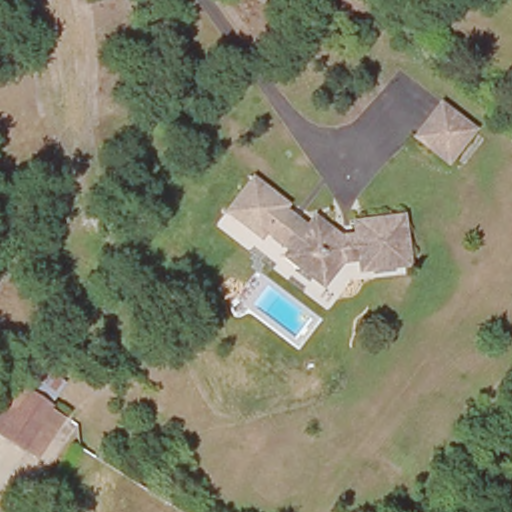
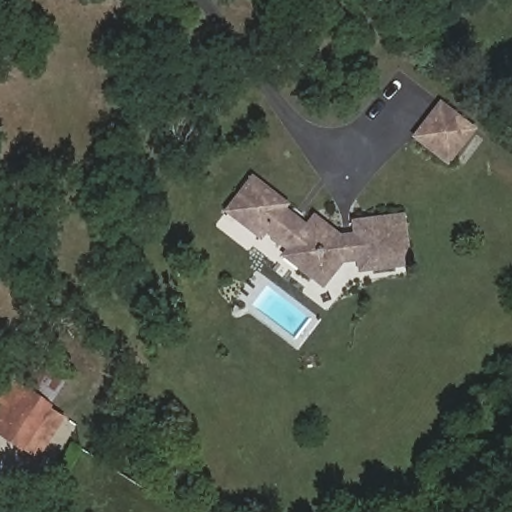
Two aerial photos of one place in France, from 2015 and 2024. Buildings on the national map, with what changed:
unchanged [(446,108),(481,136),(452,171),(418,142),(446,108)]
unchanged [(230,211),(242,196),(257,178),(288,203),(283,210),(306,229),(292,248),(268,229),(262,235),(230,211)]
unchanged [(292,248),(306,229),(317,216),(343,236),(359,234),(358,222),(405,216),(411,264),(364,269),(362,256),(346,258),(324,285),(286,254),(292,248)]
unchanged [(0,439),(0,389),(7,379),(46,407),(16,451),(0,439)]
unchanged [(63,418),(31,462),(16,451),(46,407),(63,418)]

